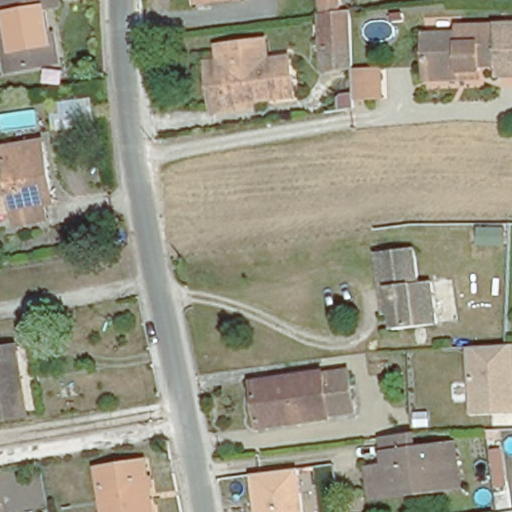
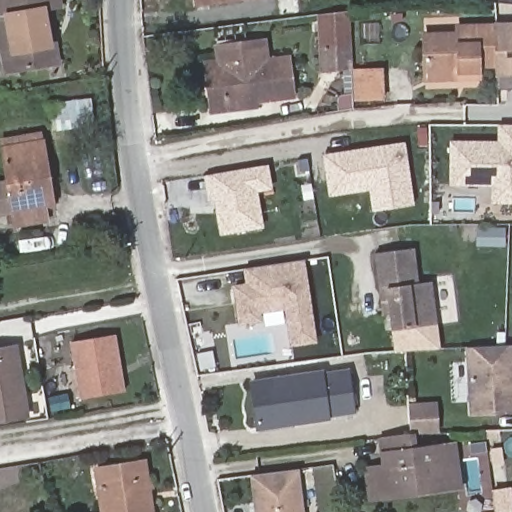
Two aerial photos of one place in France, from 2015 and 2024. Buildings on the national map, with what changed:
unchanged [(53,56),(17,63),(5,64),(0,36),(0,0),(62,0),(62,1),(45,4),(49,29),(57,27),(61,55),(53,56)]
unchanged [(197,0),(206,0),(197,1),(197,0)]
unchanged [(350,12),(352,74),(318,74),(315,0),(338,0),(339,12),(350,12)]
unchanged [(431,63),(430,29),(462,29),(462,21),(512,20),(512,71),(502,70),(502,61),(482,61),(482,73),(431,74),(431,63)]
unchanged [(217,113),(217,108),(210,63),(227,60),(225,48),(272,40),(275,59),(292,56),(298,95),(261,101),(262,106),(217,113)]
unchanged [(385,68),(387,100),(358,102),(356,69),(385,68)]
unchanged [(93,94),(98,130),(51,138),(46,101),(93,94)]
new [(501,126),(512,126),(512,203),(493,204),(493,187),(453,187),(453,143),(501,141),(501,126)]
unchanged [(43,205),(46,220),(16,225),(13,210),(3,212),(0,192),(0,184),(9,182),(2,146),(43,139),(52,191),(54,203),(43,205)]
new [(406,142),(414,204),(374,209),(371,192),(331,197),(326,154),(406,142)]
new [(272,163),(275,189),(260,192),(267,228),(223,235),(216,200),(210,202),(205,175),(272,163)]
unchanged [(3,218),(0,218),(0,201),(3,218)]
unchanged [(418,278),(431,277),(436,317),(393,324),(391,308),(384,309),(376,249),(383,249),(413,244),(418,278)]
new [(307,261),(318,344),(293,347),(287,309),(263,313),(264,322),(240,324),(236,287),(248,284),(246,269),(307,261)]
new [(442,348),(396,351),(393,324),(436,317),(442,348)]
new [(113,333),(123,389),(79,397),(70,340),(113,333)]
unchanged [(22,340),(32,409),(0,414),(0,344),(22,340)]
unchanged [(512,415),(470,417),(466,348),(512,345),(512,415)]
unchanged [(353,407),(261,423),(253,380),(320,368),(321,373),(346,368),(353,407)]
unchanged [(365,466),(377,464),(395,462),(393,449),(386,451),(382,428),(411,424),(414,447),(453,441),(460,486),(435,489),(370,499),(365,466)]
unchanged [(104,483),(101,463),(150,455),(157,512),(108,512),(104,483)]
unchanged [(304,512),(255,512),(250,476),(299,469),(304,512)]

